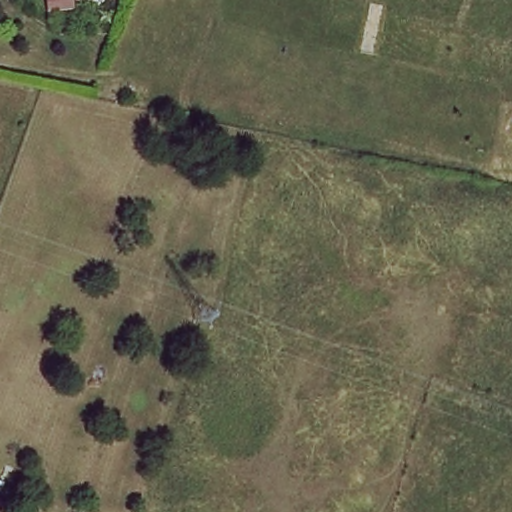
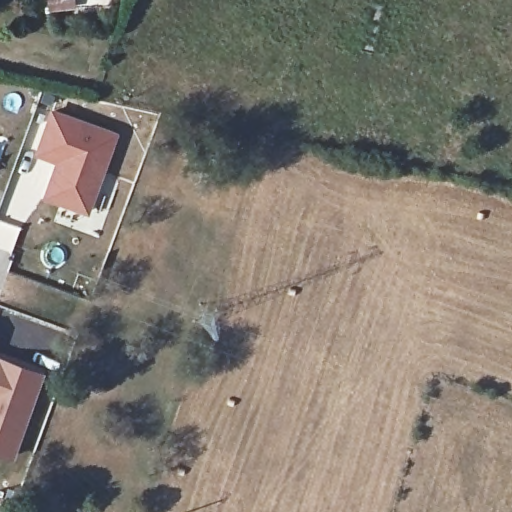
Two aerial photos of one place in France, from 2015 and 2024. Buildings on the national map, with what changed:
new [(41,198),(53,163),(33,154),(49,108),(116,132),(88,213),(41,198)]
new [(0,453),(0,360),(39,374),(9,456),(0,453)]

